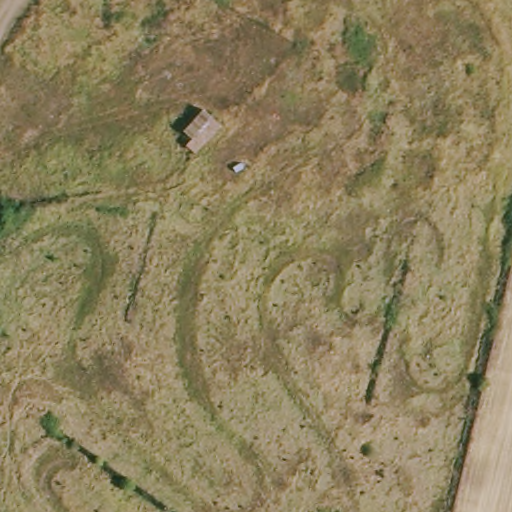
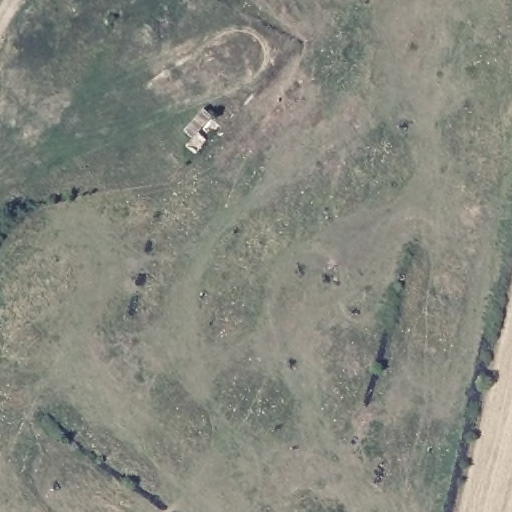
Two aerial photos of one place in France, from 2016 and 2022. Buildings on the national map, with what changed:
unchanged [(186,141),(192,135),(181,127),(201,105),(214,112),(212,115),(223,124),(198,150),(186,141)]

